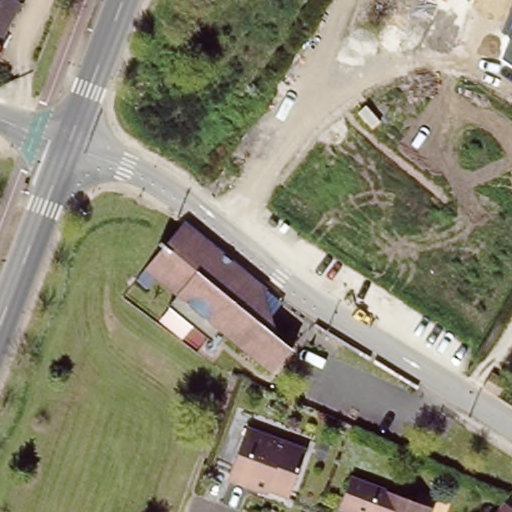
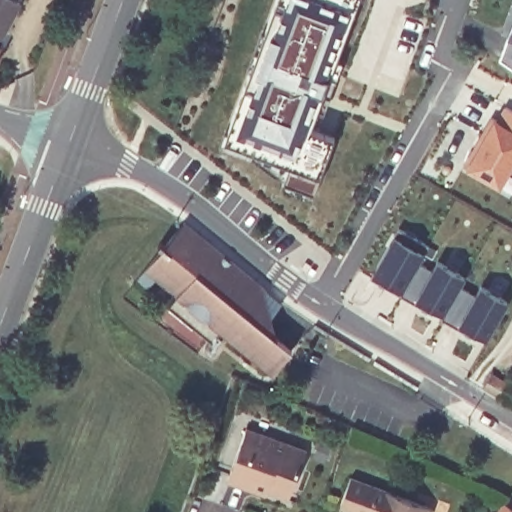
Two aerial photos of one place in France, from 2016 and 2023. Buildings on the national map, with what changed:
unchanged [(10,39),(12,41),(6,49),(10,51),(0,72),(0,0),(17,0),(27,5),(10,39)]
new [(350,9),(306,128),(332,136),(312,190),(282,179),(250,156),(252,149),(223,138),(276,0),(355,0),(350,9)]
unchanged [(508,36),(500,33),(512,0),(512,69),(498,59),(508,36)]
new [(500,186),(465,166),(463,165),(492,115),(496,116),(503,105),(512,110),(512,167),(500,186)]
unchanged [(265,325),(292,346),(272,369),(223,329),(215,338),(171,302),(180,292),(157,274),(150,284),(140,276),(148,266),(164,246),(160,243),(165,239),(168,241),(182,224),(186,218),(195,225),(199,229),(265,283),(285,300),(285,301),(265,325)]
new [(488,339),(478,334),(477,338),(370,277),(372,271),(394,235),(398,228),(430,244),(424,252),(417,263),(431,271),(437,260),(466,276),(460,287),(475,295),(480,285),(508,300),(488,339)]
unchanged [(485,370),(505,383),(497,395),(483,387),(477,383),(485,370)]
unchanged [(228,481),(248,430),(307,453),(290,500),(267,492),(255,487),(252,490),(228,481)]
unchanged [(351,512),(340,507),(352,478),(433,509),(433,512),(351,512)]
unchanged [(499,512),(508,501),(512,504),(512,512),(499,512)]

